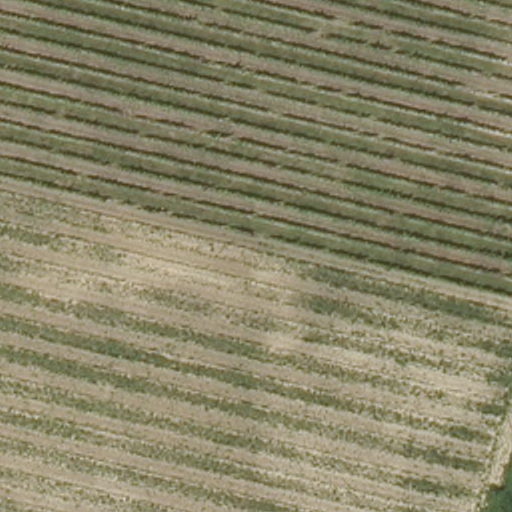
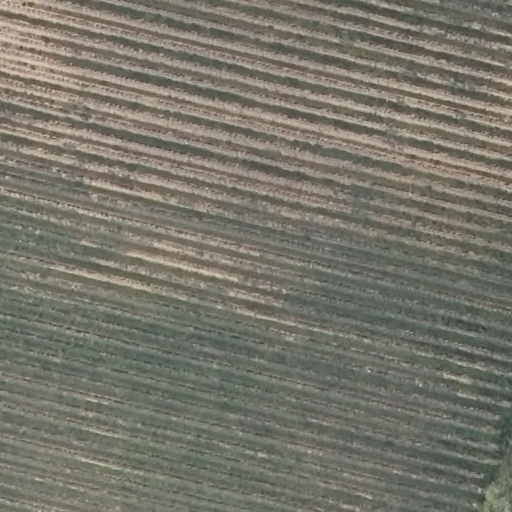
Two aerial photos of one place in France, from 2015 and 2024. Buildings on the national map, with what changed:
[]

